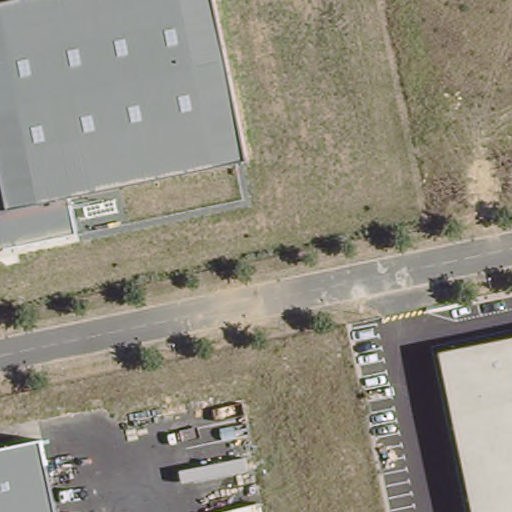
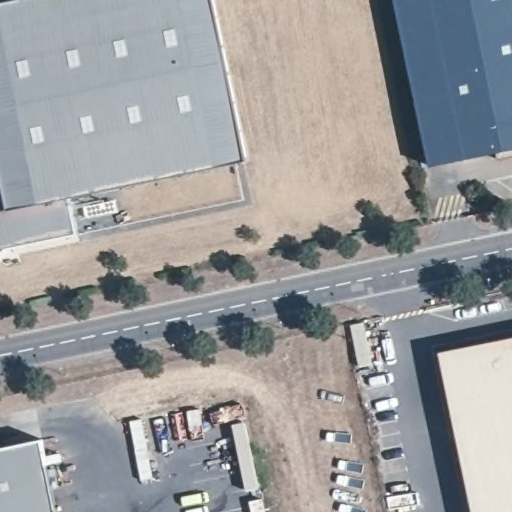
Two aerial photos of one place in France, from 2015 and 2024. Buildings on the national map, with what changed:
unchanged [(248,159),(71,197),(79,235),(0,253),(0,4),(17,0),(215,0),(248,159)]
new [(502,158),(500,151),(431,165),(397,0),(512,0),(512,156),(502,158)]
unchanged [(474,512),(440,353),(512,338),(512,512),(474,512)]
unchanged [(59,512),(0,512),(0,449),(44,439),(59,512)]

